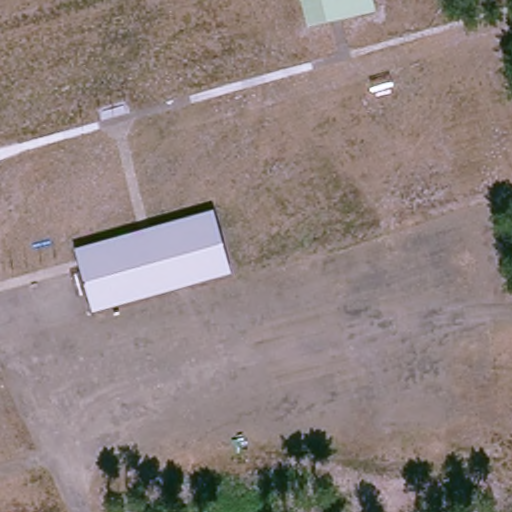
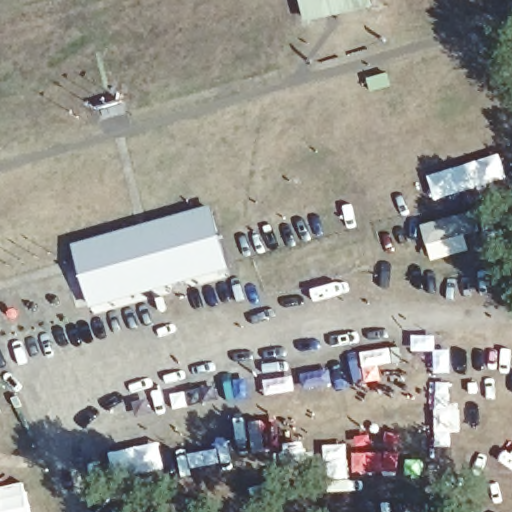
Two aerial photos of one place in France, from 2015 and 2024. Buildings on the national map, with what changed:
unchanged [(371,10),(312,24),(306,0),(369,0),(371,10)]
unchanged [(214,212),(230,268),(93,307),(77,250),(214,212)]
new [(466,235),(470,251),(440,259),(428,227),(472,215),(477,232),(466,235)]
new [(30,512),(0,512),(0,488),(25,482),(30,512)]

